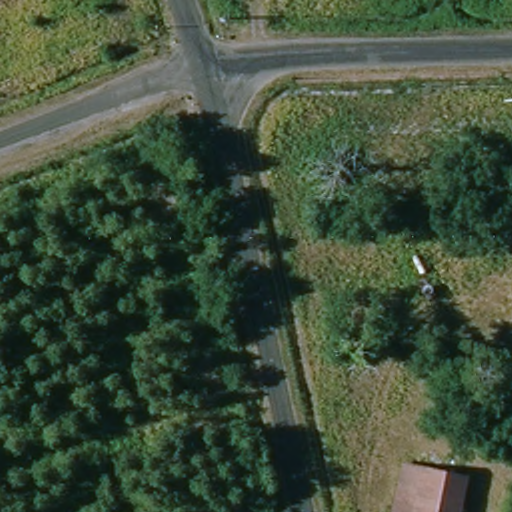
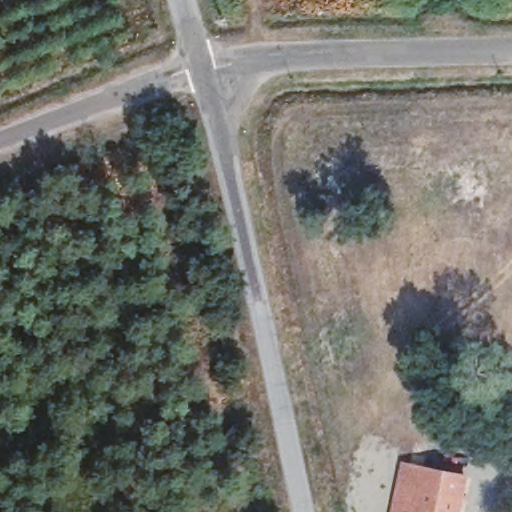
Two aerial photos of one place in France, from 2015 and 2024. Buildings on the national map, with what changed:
unchanged [(402,470),(422,472),(415,512),(394,512),(402,470)]
unchanged [(422,472),(465,479),(461,512),(415,512),(422,472)]

